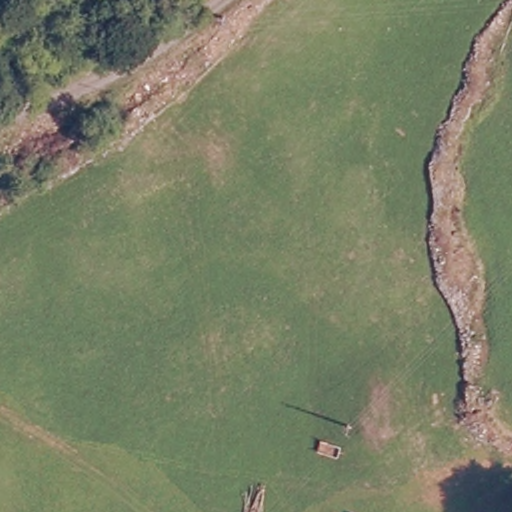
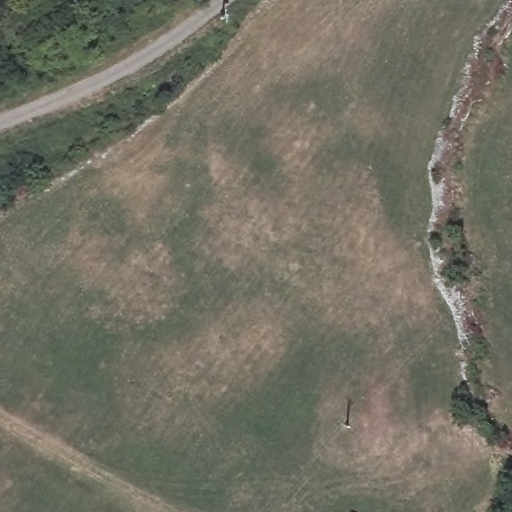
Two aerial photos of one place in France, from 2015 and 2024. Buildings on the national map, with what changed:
unchanged [(366,512),(364,512),(365,511),(366,512)]

